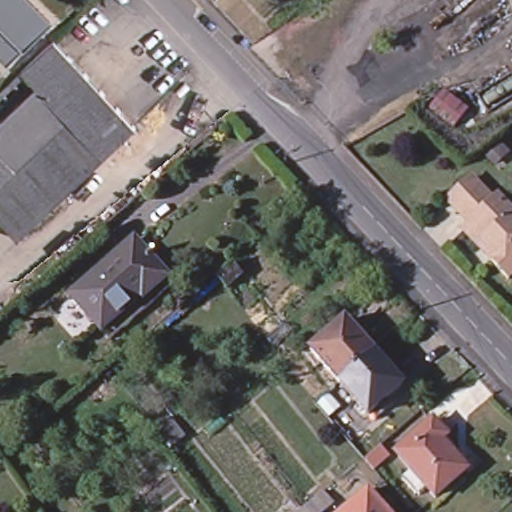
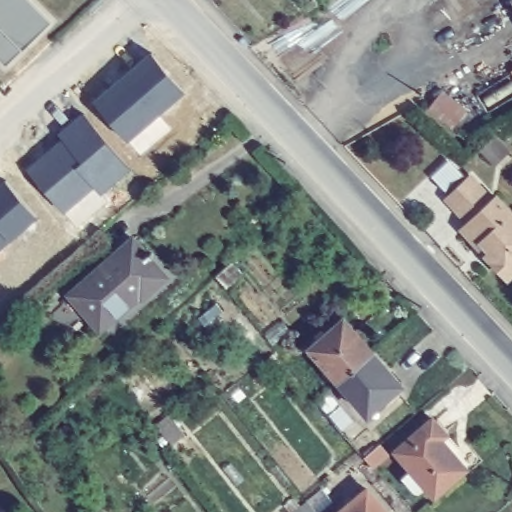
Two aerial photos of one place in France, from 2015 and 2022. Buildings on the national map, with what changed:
unchanged [(0,58),(0,0),(33,0),(51,18),(5,63),(0,58)]
unchanged [(512,5),(509,0),(512,0),(512,5)]
demolished [(9,171),(64,119),(32,84),(17,69),(18,68),(50,37),(129,123),(45,207),(9,171)]
new [(187,93),(130,137),(94,100),(149,50),(187,93)]
unchanged [(512,63),(512,68),(510,64),(512,63)]
demolished [(32,84),(64,119),(9,171),(0,180),(0,114),(32,84)]
new [(105,139),(132,172),(100,198),(95,188),(62,215),(41,189),(105,139)]
demolished [(9,171),(45,207),(12,239),(0,227),(0,180),(9,171)]
unchanged [(512,211),(512,218),(485,244),(480,240),(477,242),(461,226),(465,220),(454,207),(445,197),(470,173),(480,183),(492,196),(495,193),(512,211)]
new [(7,182),(37,218),(0,250),(0,188),(7,182)]
unchanged [(490,256),(489,247),(485,244),(512,218),(512,268),(507,272),(490,256)]
unchanged [(130,236),(165,274),(142,296),(139,294),(100,327),(69,292),(130,236)]
unchanged [(240,279),(225,293),(216,283),(217,282),(231,269),(240,279)]
unchanged [(336,381),(304,345),(340,315),(370,350),(336,381)]
unchanged [(400,385),(366,415),(336,381),(370,350),(400,385)]
unchanged [(411,484),(402,472),(412,463),(397,445),(435,413),(448,430),(442,435),(467,465),(435,491),(426,480),(417,486),(411,484)]
unchanged [(169,424),(183,445),(170,454),(155,434),(169,424)]
unchanged [(379,435),(389,447),(372,461),(362,450),(379,435)]
unchanged [(390,512),(333,512),(365,484),(390,512)]

